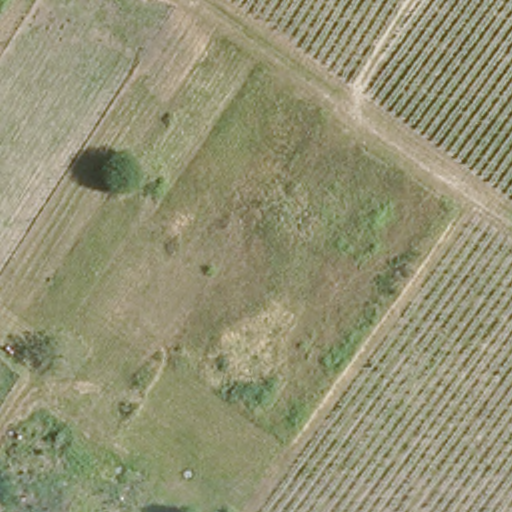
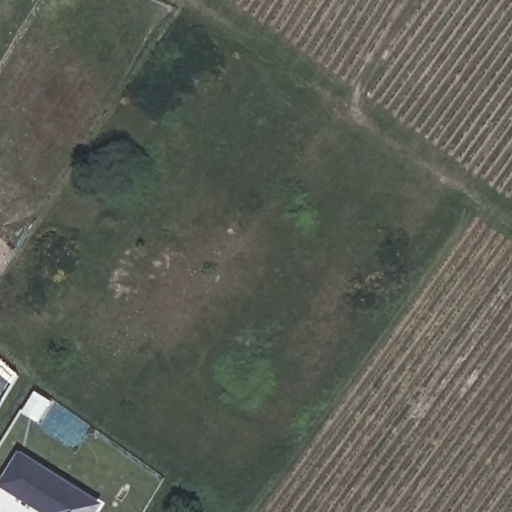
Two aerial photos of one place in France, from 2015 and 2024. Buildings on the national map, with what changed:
new [(0,486),(0,483),(20,451),(103,503),(97,512),(43,512),(0,486)]

